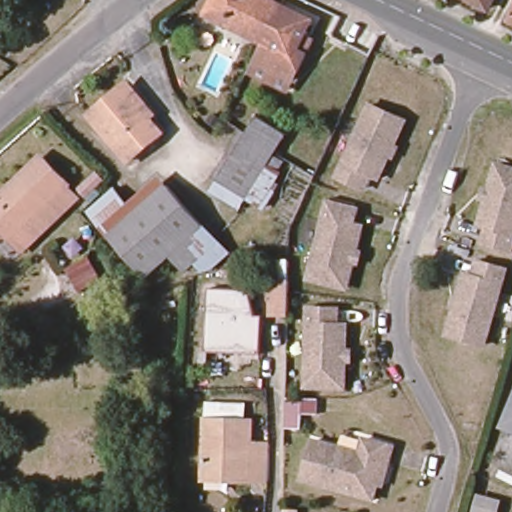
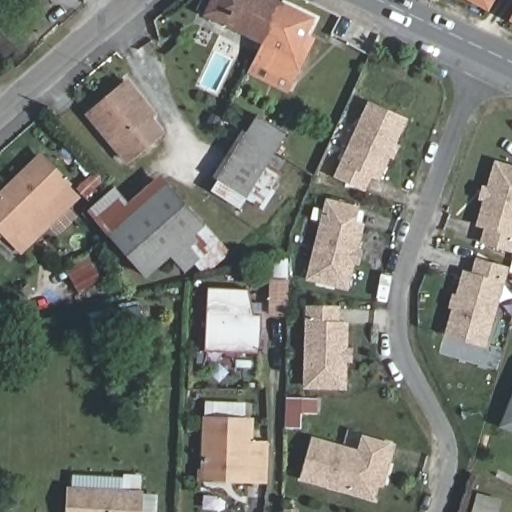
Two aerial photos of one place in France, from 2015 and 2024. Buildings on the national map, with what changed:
unchanged [(260,42),(204,14),(211,0),(265,0),(277,6),(260,42)]
unchanged [(485,10),(466,0),(490,0),(485,10)]
unchanged [(310,22),(305,35),(312,39),(290,83),(255,65),(264,45),(260,42),(277,6),(310,22)]
unchanged [(508,22),(512,14),(512,23),(508,22)]
new [(112,57),(119,65),(100,82),(92,74),(112,57)]
unchanged [(160,124),(155,129),(164,141),(131,167),(91,116),(127,85),(160,124)]
unchanged [(402,121),(377,179),(369,175),(363,189),(336,177),(367,106),(402,121)]
unchanged [(254,122),(284,142),(276,157),(249,200),(216,177),(240,135),(245,138),(254,122)]
unchanged [(13,247),(0,232),(0,201),(42,162),(71,195),(13,247)]
unchanged [(480,242),(484,227),(477,225),(487,191),(493,164),(512,169),(512,237),(508,250),(480,242)]
unchanged [(89,204),(81,194),(96,180),(105,188),(89,204)]
unchanged [(184,258),(172,247),(145,270),(109,229),(108,228),(106,231),(91,216),(115,192),(130,208),(161,180),(212,235),(184,258)]
unchanged [(315,260),(331,200),(360,207),(356,222),(364,224),(348,284),(311,275),(315,260)]
unchanged [(96,283),(79,293),(65,272),(84,260),(96,283)]
new [(268,261),(290,262),(290,278),(267,278),(268,261)]
unchanged [(482,345),(444,335),(458,287),(462,274),(471,277),(475,262),(503,269),(482,345)]
unchanged [(287,317),(270,316),(272,282),(287,282),(287,317)]
unchanged [(262,291),(261,353),(207,352),(211,290),(262,291)]
unchanged [(309,305),(338,307),(338,322),(347,322),(343,386),(306,383),(309,305)]
unchanged [(318,415),(305,415),(304,430),(285,429),(286,397),(318,401),(318,415)]
unchanged [(510,410),(512,404),(512,426),(505,423),(510,410)]
unchanged [(258,444),(272,445),(272,483),(207,482),(209,421),(257,422),(258,444)]
unchanged [(377,481),(372,496),(302,475),(314,437),(360,452),(365,437),(392,445),(388,461),(382,482),(377,481)]
new [(66,512),(67,487),(144,491),(143,512),(66,512)]
unchanged [(473,512),(477,497),(502,502),(499,512),(473,512)]

